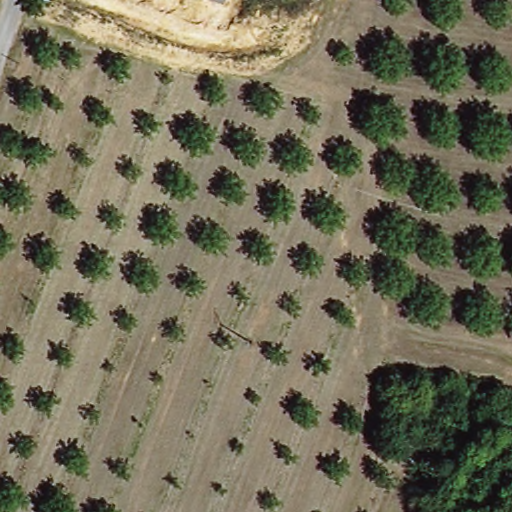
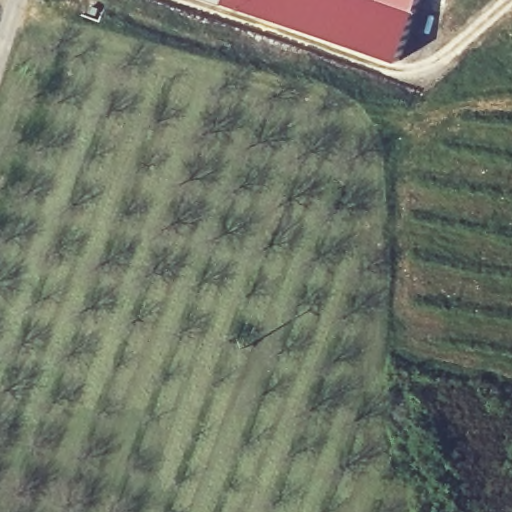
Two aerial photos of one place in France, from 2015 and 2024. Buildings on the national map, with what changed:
unchanged [(212,0),(224,0),(222,4),(212,0)]
new [(222,4),(224,0),(420,0),(399,64),(222,4)]

